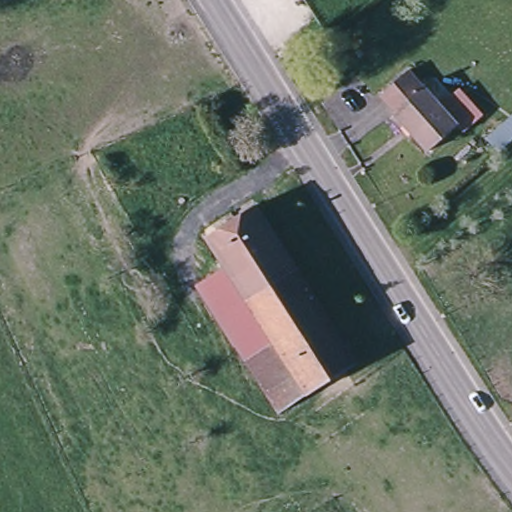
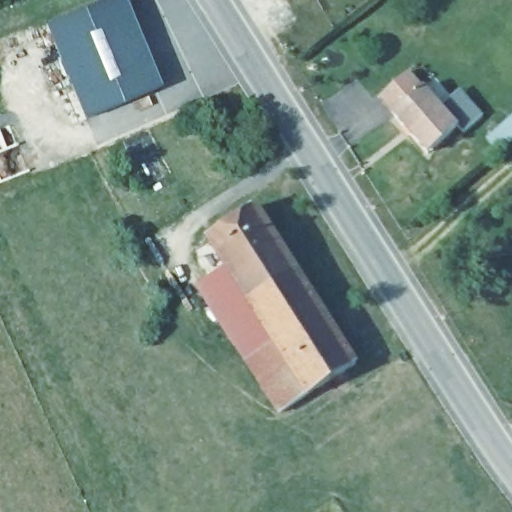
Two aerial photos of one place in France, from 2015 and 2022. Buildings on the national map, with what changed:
new [(131,19),(160,87),(82,119),(45,25),(105,0),(128,0),(135,17),(131,19)]
unchanged [(306,4),(303,0),(312,0),(306,4)]
unchanged [(455,125),(425,150),(391,112),(393,109),(380,94),(405,73),(418,88),(420,86),(455,125)]
unchanged [(261,205),(281,237),(232,267),(213,236),(261,205)]
unchanged [(294,258),(245,287),(232,267),(281,237),(294,258)]
unchanged [(358,362),(282,410),(238,336),(265,321),(245,287),(294,258),(358,362)]
unchanged [(232,267),(245,287),(265,321),(238,336),(207,282),(232,267)]

